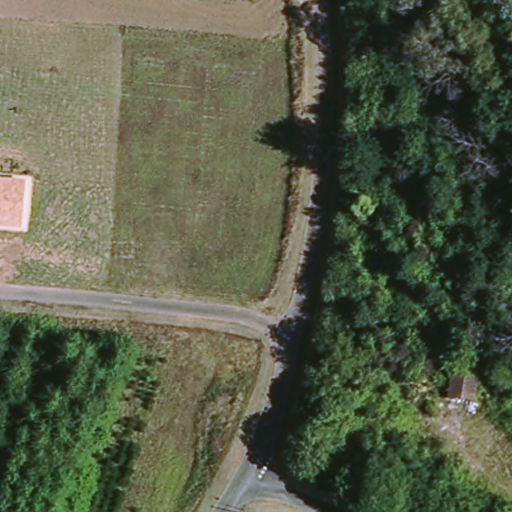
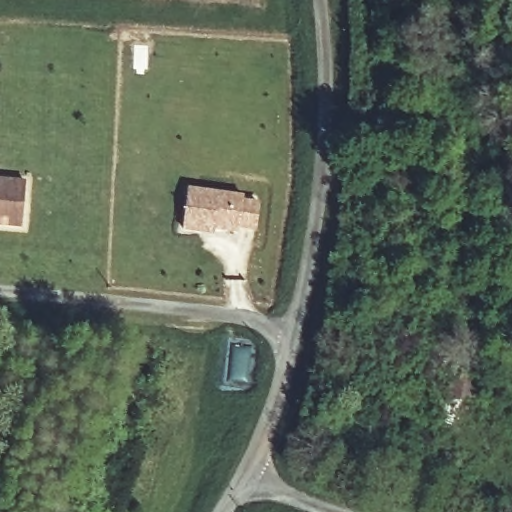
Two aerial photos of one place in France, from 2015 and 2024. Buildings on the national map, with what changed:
unchanged [(22,227),(0,226),(0,179),(26,181),(22,227)]
new [(198,231),(181,229),(186,190),(241,197),(240,201),(256,204),(252,230),(237,227),(236,231),(212,229),(211,233),(198,231)]
unchanged [(478,376),(473,403),(446,398),(450,373),(478,376)]

